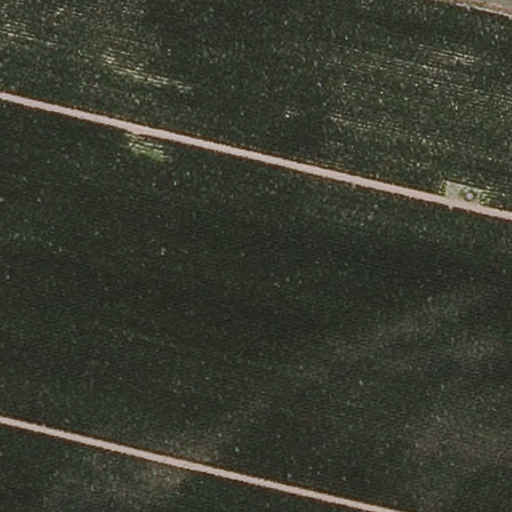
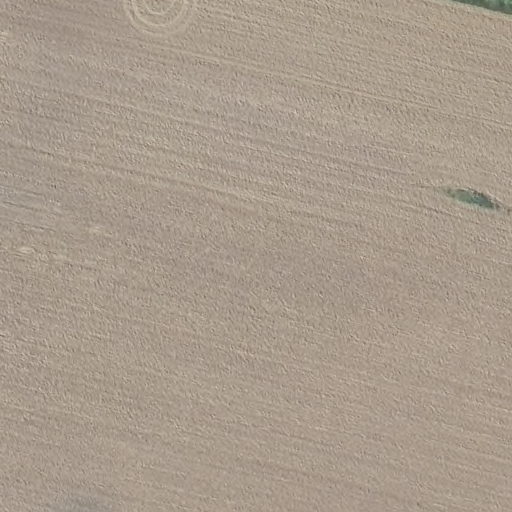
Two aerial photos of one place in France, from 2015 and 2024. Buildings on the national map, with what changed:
[]

